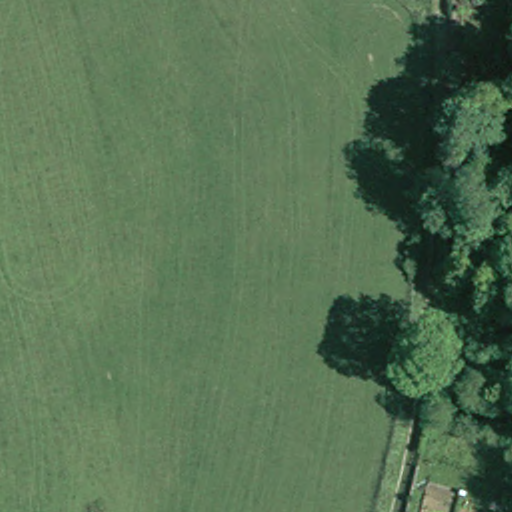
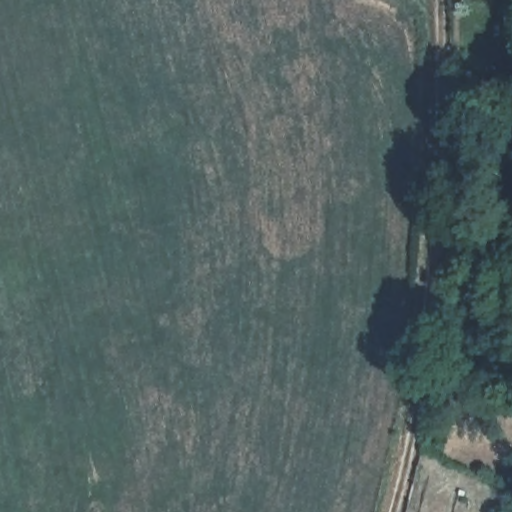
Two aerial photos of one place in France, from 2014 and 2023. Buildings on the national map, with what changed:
unchanged [(508,85),(509,72),(512,72),(512,84),(508,85)]
unchanged [(487,147),(507,150),(505,167),(485,164),(487,147)]
unchanged [(512,327),(512,334),(512,337),(502,336),(504,326),(512,327)]

